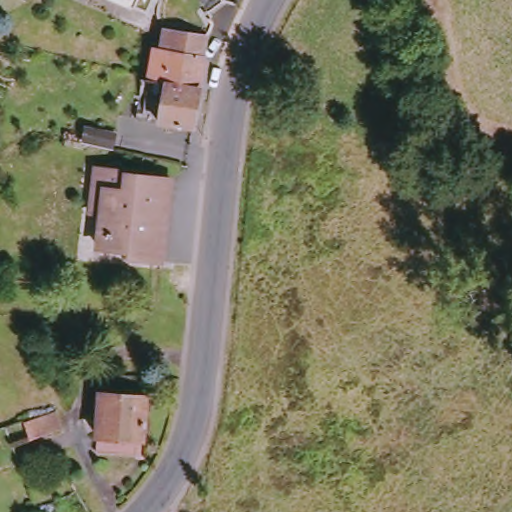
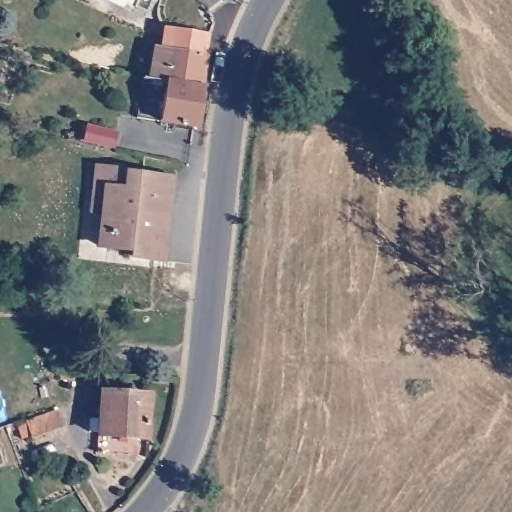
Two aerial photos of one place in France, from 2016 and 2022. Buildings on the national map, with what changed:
unchanged [(154,76),(158,64),(161,47),(168,49),(170,27),(212,33),(210,86),(154,76)]
unchanged [(143,118),(145,75),(154,76),(210,86),(201,123),(143,118)]
unchanged [(123,142),(105,138),(92,135),(94,122),(111,126),(123,129),(123,142)]
unchanged [(185,182),(167,265),(133,258),(135,252),(105,245),(118,191),(103,187),(110,164),(185,182)]
unchanged [(150,397),(145,438),(97,432),(102,391),(150,397)]
unchanged [(27,422),(58,411),(62,426),(32,436),(27,422)]

